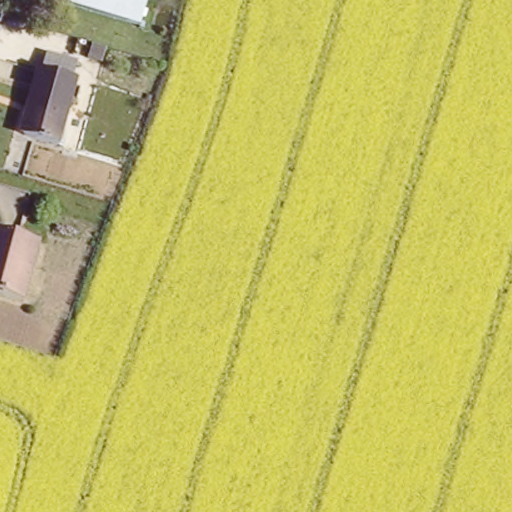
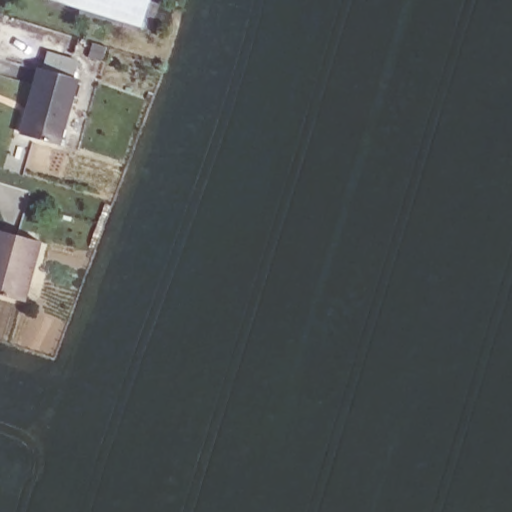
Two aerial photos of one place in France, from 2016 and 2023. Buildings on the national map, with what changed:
unchanged [(73,0),(142,0),(136,20),(73,0)]
unchanged [(37,70),(42,55),(72,65),(68,79),(71,80),(52,144),(18,134),(27,107),(22,106),(33,69),(37,70)]
unchanged [(21,296),(0,290),(0,221),(40,232),(21,296)]

